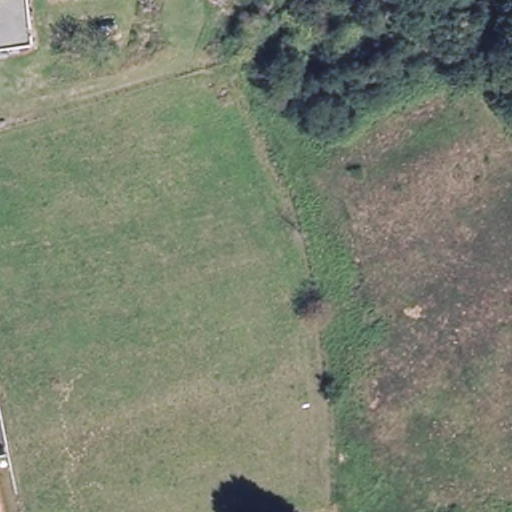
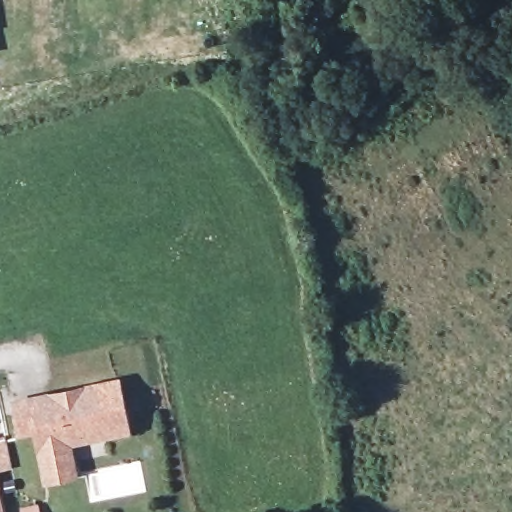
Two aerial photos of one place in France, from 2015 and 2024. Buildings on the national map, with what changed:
new [(34,433),(17,437),(10,398),(120,376),(131,431),(71,443),(78,476),(43,483),(37,450),(34,433)]
unchanged [(0,512),(0,496),(3,512),(0,512)]

